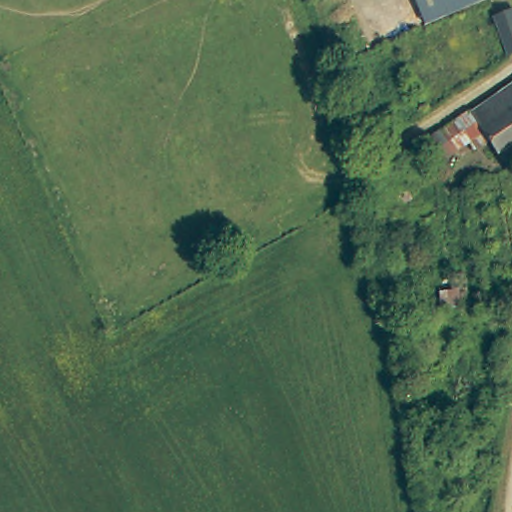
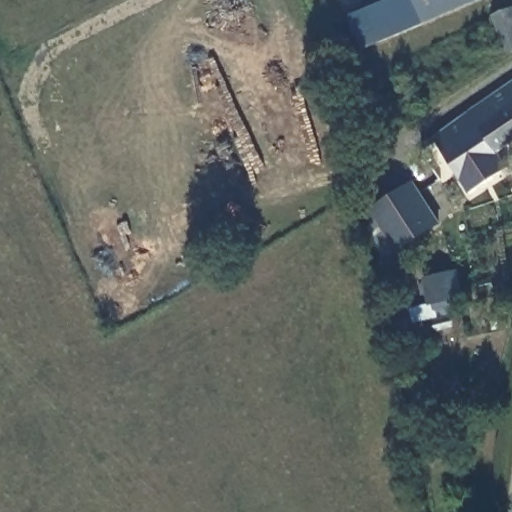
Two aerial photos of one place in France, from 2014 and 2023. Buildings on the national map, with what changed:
new [(348,15),(387,0),(413,0),(423,24),(363,49),(348,15)]
unchanged [(479,0),(423,24),(413,0),(479,0)]
unchanged [(512,8),(512,53),(507,56),(493,16),(512,8)]
unchanged [(512,83),(512,142),(492,155),(483,142),(466,114),(512,83)]
new [(492,155),(504,169),(469,193),(434,138),(467,115),(492,155)]
new [(397,250),(372,208),(412,181),(439,224),(397,250)]
new [(456,269),(464,309),(431,316),(421,278),(456,269)]

